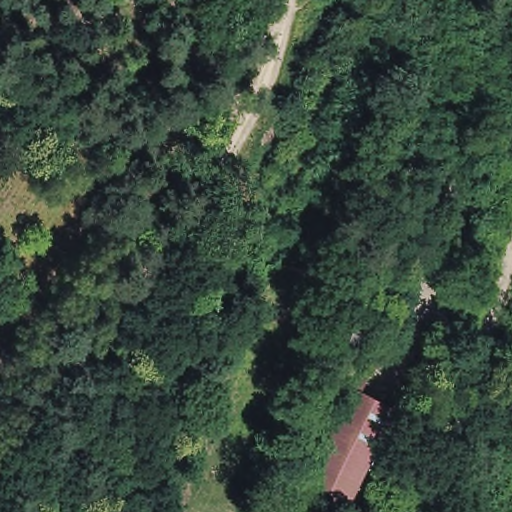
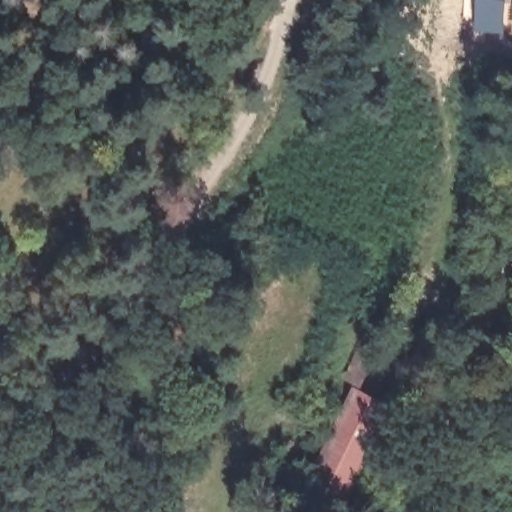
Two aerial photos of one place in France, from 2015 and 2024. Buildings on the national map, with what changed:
new [(473,35),(476,0),(504,0),(502,33),(473,35)]
unchanged [(347,396),(354,381),(356,382),(368,388),(362,403),(350,397),(347,396)]
unchanged [(346,512),(312,495),(354,407),(390,424),(348,512),(346,512)]

